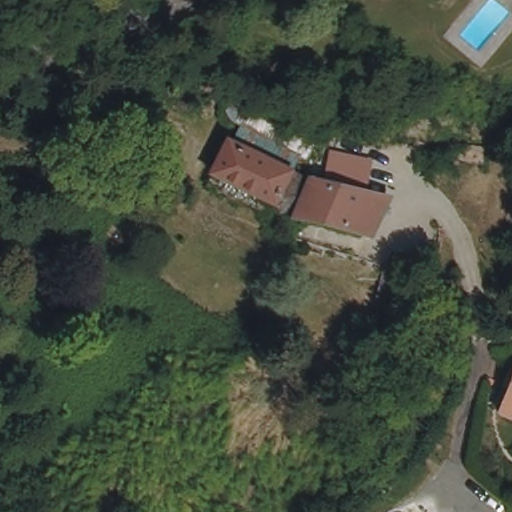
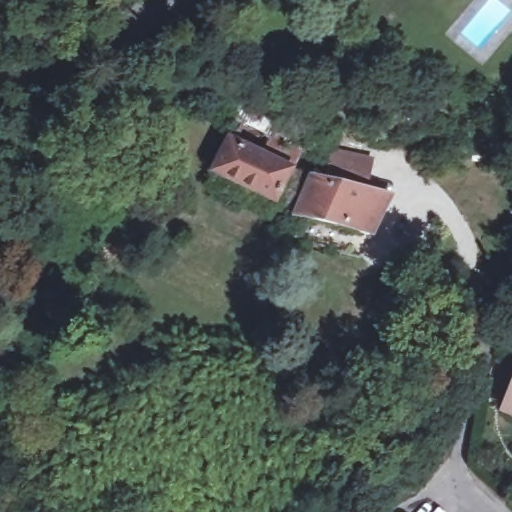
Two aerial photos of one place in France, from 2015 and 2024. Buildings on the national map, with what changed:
unchanged [(213,139),(220,142),(228,123),(217,115),(216,105),(217,100),(235,109),(301,138),(299,141),(303,144),(299,158),(290,154),(280,171),(297,177),(284,214),(260,205),(262,197),(200,175),(198,174),(213,139)]
unchanged [(489,148),(487,161),(452,157),(452,144),(489,148)]
unchanged [(262,197),(260,205),(257,213),(195,191),(200,175),(262,197)]
unchanged [(381,194),(362,235),(291,216),(306,178),(381,194)]
unchanged [(507,264),(512,261),(512,276),(507,264)]
unchanged [(418,274),(407,316),(376,307),(387,266),(418,274)]
unchanged [(506,401),(512,386),(512,404),(506,401)]

